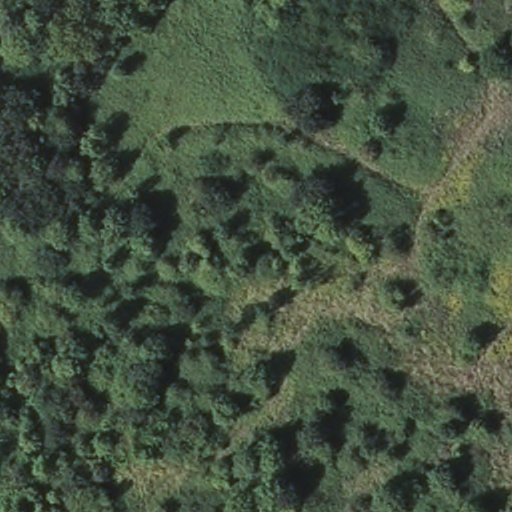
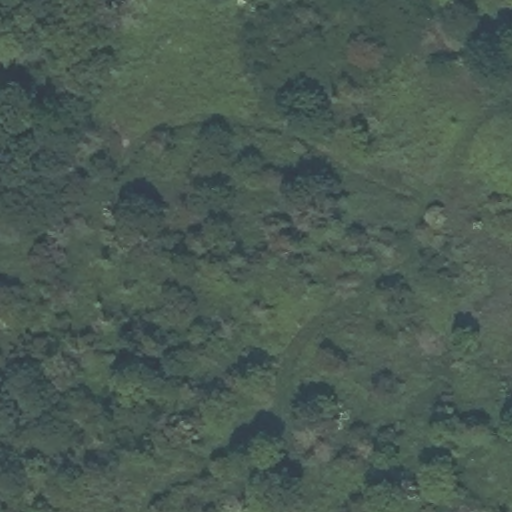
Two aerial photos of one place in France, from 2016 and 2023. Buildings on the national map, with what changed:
[]

